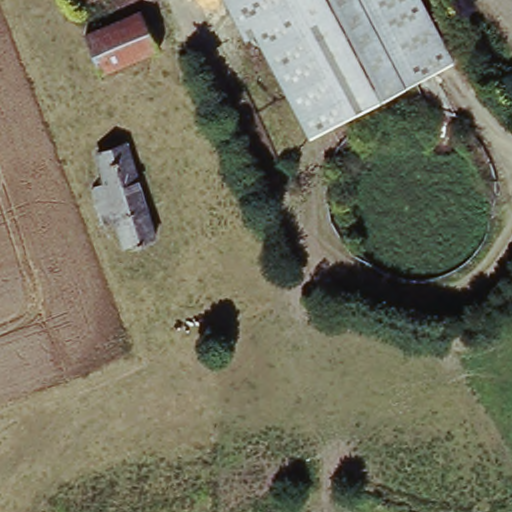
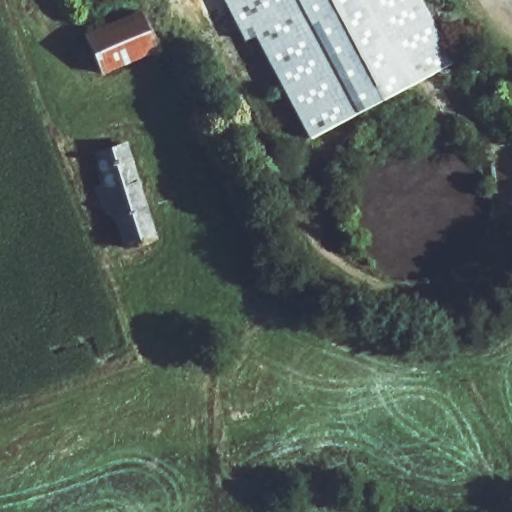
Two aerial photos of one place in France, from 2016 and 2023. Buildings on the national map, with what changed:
unchanged [(255,45),(230,0),(424,0),(457,66),(313,138),(262,42),(255,45)]
unchanged [(94,38),(150,16),(165,55),(109,77),(94,38)]
unchanged [(166,240),(135,248),(104,155),(135,147),(166,240)]

